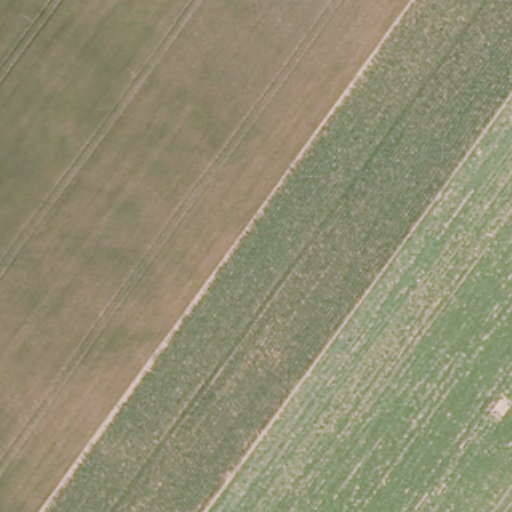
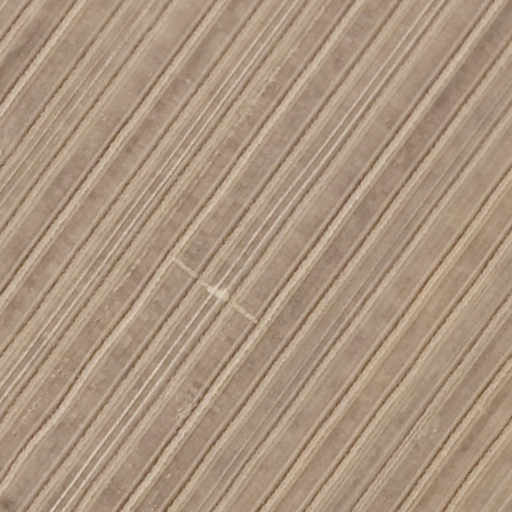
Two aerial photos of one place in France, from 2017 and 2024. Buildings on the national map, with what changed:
[]

